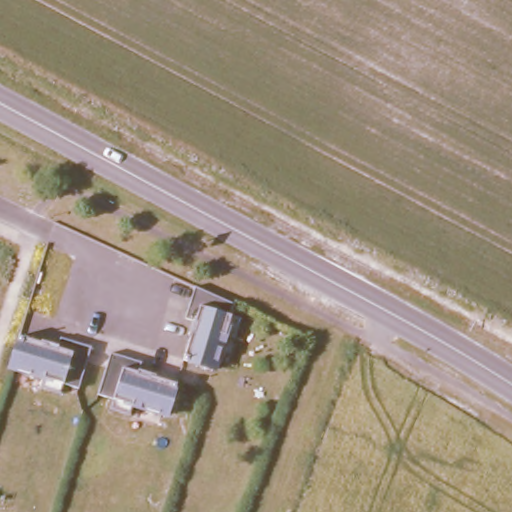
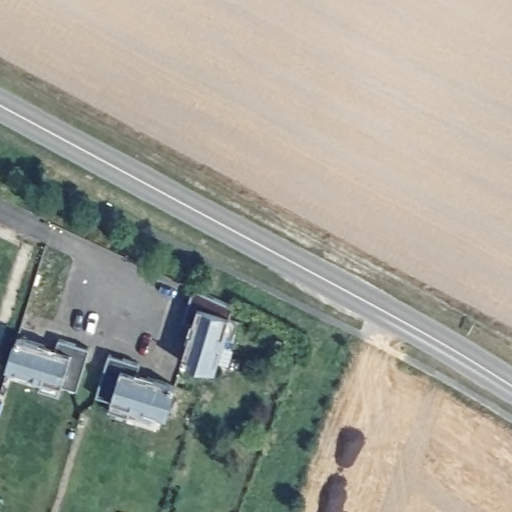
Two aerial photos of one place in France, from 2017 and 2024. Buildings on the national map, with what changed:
unchanged [(238,300),(235,310),(245,314),(239,334),(229,331),(219,366),(187,356),(195,328),(200,329),(203,319),(188,314),(198,282),(238,300)]
unchanged [(50,344),(49,349),(59,353),(64,338),(95,348),(82,389),(67,385),(64,395),(43,389),(47,379),(12,368),(22,337),(50,344)]
unchanged [(145,363),(141,378),(151,381),(152,376),(180,384),(171,417),(136,406),(133,416),(113,410),(116,400),(101,395),(114,353),(145,363)]

